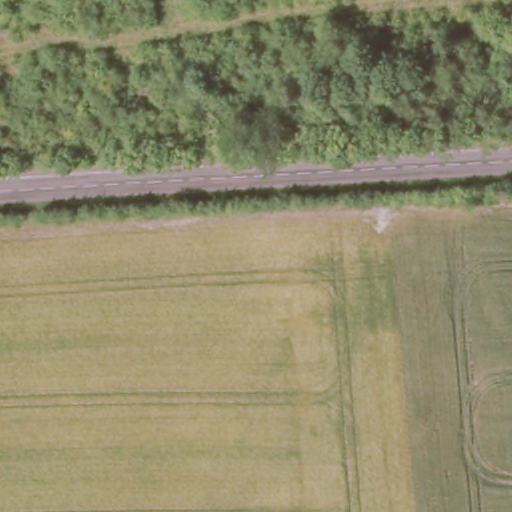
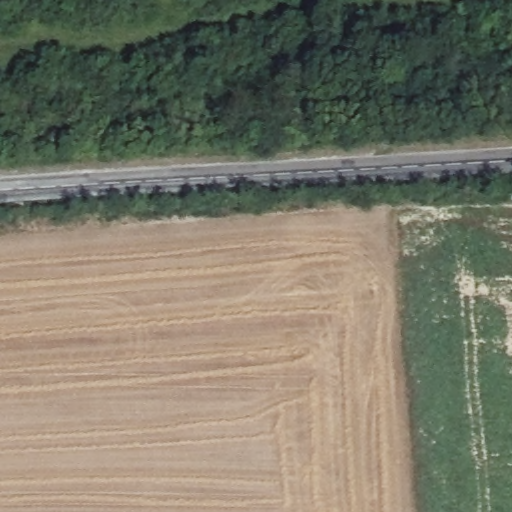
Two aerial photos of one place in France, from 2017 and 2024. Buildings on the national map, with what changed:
[]

